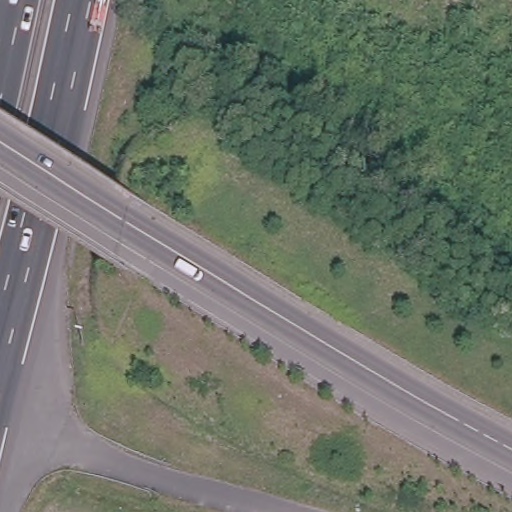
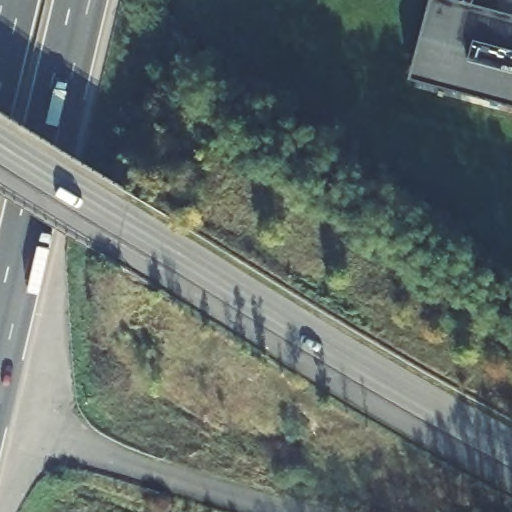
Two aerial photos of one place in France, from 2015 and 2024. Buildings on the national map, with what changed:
new [(438,0),(463,0),(473,0),(472,2),(512,13),(512,106),(417,80),(438,0)]

